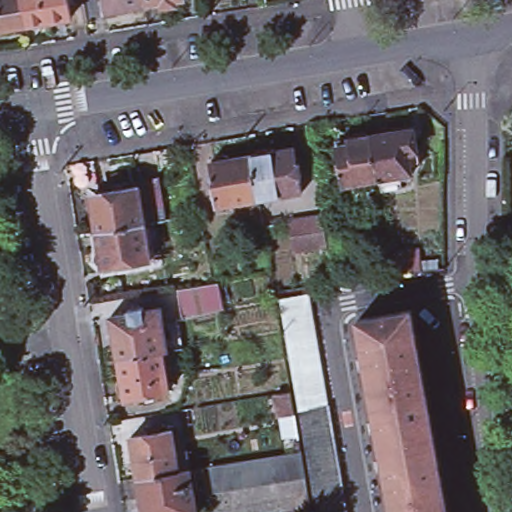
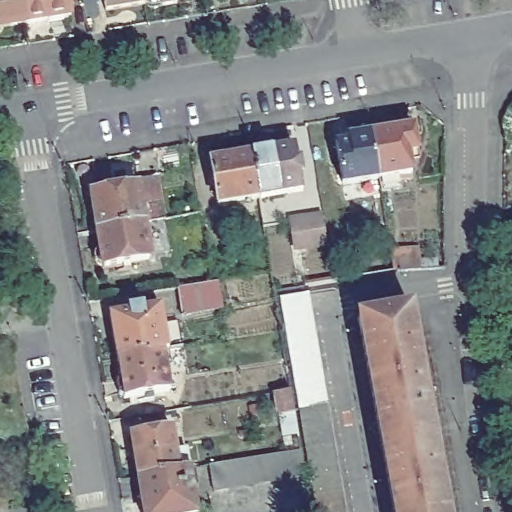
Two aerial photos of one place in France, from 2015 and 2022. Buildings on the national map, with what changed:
unchanged [(6,26),(5,28),(4,30),(2,31),(1,32),(0,33),(0,0),(26,0),(30,22),(6,26)]
unchanged [(74,15),(30,22),(26,0),(71,0),(74,15)]
unchanged [(109,14),(106,0),(147,0),(148,7),(109,14)]
unchanged [(148,7),(147,0),(187,0),(188,0),(148,7)]
unchanged [(417,125),(421,149),(413,151),(417,172),(382,177),(374,133),(417,125)]
unchanged [(382,177),(349,183),(341,138),(357,136),(360,132),(366,130),(374,133),(382,177)]
unchanged [(293,150),(296,166),(299,166),(301,179),(298,179),(300,195),(259,202),(251,157),(293,150)]
unchanged [(259,202),(218,208),(211,164),(214,163),(217,159),(223,158),(228,161),(251,157),(259,202)]
unchanged [(101,224),(96,194),(101,186),(143,178),(149,216),(101,224)]
unchanged [(101,224),(149,216),(155,254),(107,262),(106,258),(104,258),(102,257),(100,256),(99,254),(99,252),(99,250),(99,248),(100,246),(102,245),(104,245),(101,224)]
unchanged [(327,246),(297,252),(291,224),(321,218),(327,246)]
unchanged [(211,286),(218,285),(222,311),(182,319),(177,292),(211,286)]
unchanged [(310,296),(346,512),(317,512),(281,301),(310,296)]
unchanged [(116,309),(135,306),(134,302),(148,300),(149,304),(165,301),(172,344),(166,345),(122,352),(116,309)]
unchanged [(385,455),(380,430),(378,420),(368,367),(359,317),(412,307),(449,512),(395,512),(387,469),(385,455)]
unchanged [(173,385),(129,392),(123,385),(122,378),(126,371),(122,352),(166,345),(173,385)]
unchanged [(295,416),(281,419),(277,397),(291,394),(295,416)]
unchanged [(138,476),(130,434),(173,427),(180,468),(138,476)]
unchanged [(305,479),(212,494),(209,470),(209,469),(226,466),(301,453),(301,455),(305,479)]
unchanged [(189,467),(196,512),(144,512),(138,476),(180,468),(189,467)]

